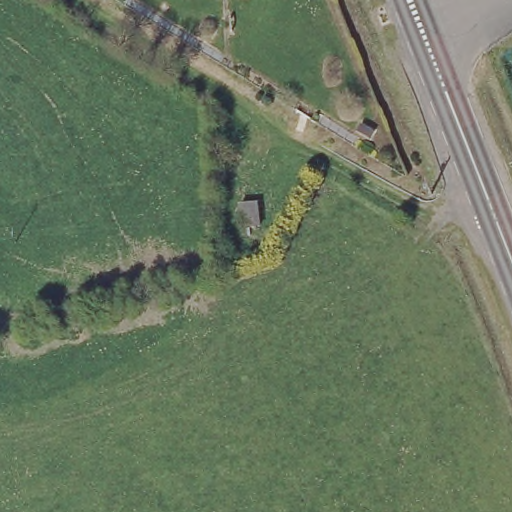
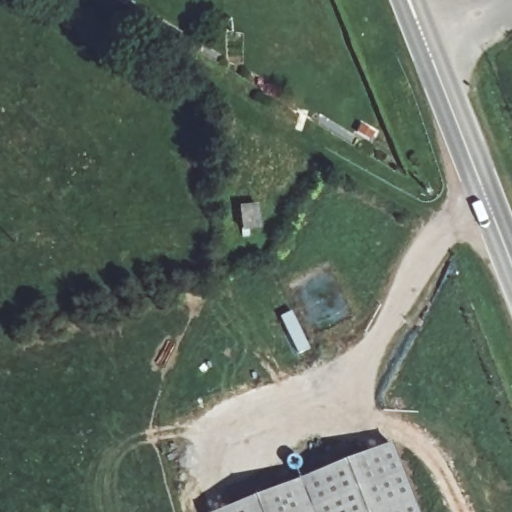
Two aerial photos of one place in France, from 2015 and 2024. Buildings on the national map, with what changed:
unchanged [(240,201),(261,198),(263,226),(242,230),(240,201)]
new [(419,512),(216,512),(393,442),(419,512)]

